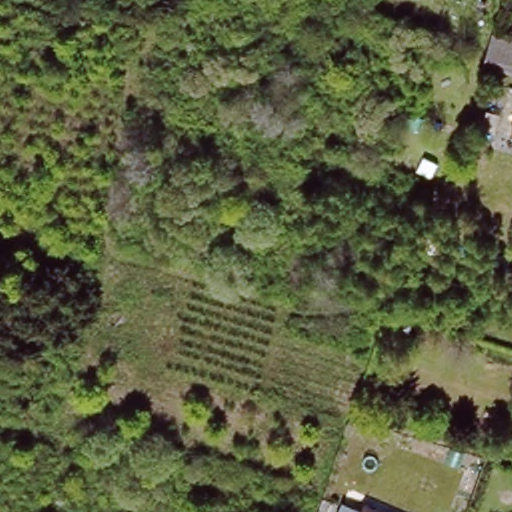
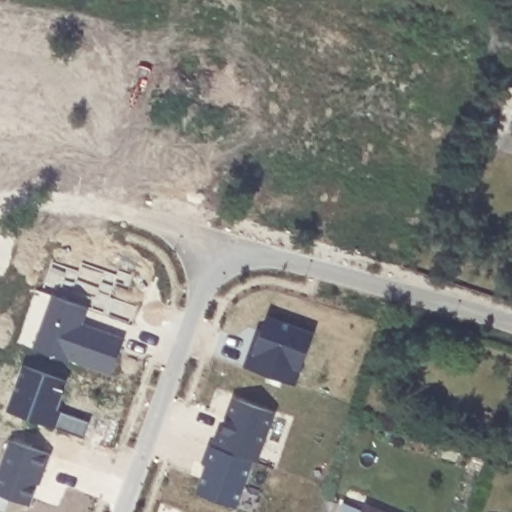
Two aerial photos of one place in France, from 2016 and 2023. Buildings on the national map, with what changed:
unchanged [(512,39),(512,72),(485,65),(494,34),(512,39)]
new [(52,297),(87,310),(81,325),(123,340),(111,375),(69,360),(68,363),(33,350),(52,297)]
new [(257,331),(261,332),(266,317),(314,334),(295,387),(243,368),(249,352),(257,331)]
new [(218,431),(221,433),(226,420),(225,419),(233,399),(274,414),(256,464),(253,462),(212,448),(218,431)]
new [(9,441),(50,456),(44,472),(42,471),(29,507),(0,496),(0,465),(9,441)]
new [(206,466),(202,465),(208,446),(212,448),(253,462),(236,509),(196,495),(206,466)]
unchanged [(336,502),(333,512),(318,512),(323,497),(336,502)]
unchanged [(359,503),(378,512),(355,512),(359,503)]

